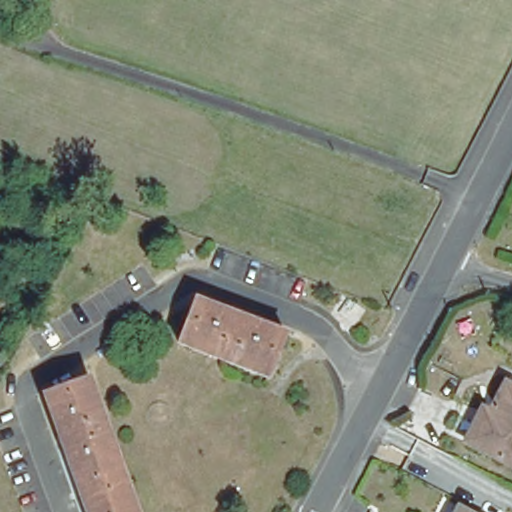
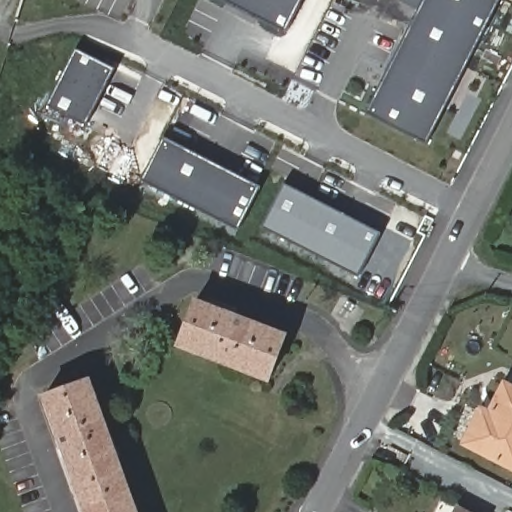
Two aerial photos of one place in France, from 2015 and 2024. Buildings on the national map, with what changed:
new [(288,34),(218,0),(304,0),(288,34)]
new [(421,0),(498,0),(425,143),(365,111),(421,0)]
new [(115,67),(81,131),(41,110),(76,45),(115,67)]
new [(165,135),(262,184),(237,232),(140,184),(165,135)]
new [(282,180),(380,231),(357,275),(260,224),(282,180)]
unchanged [(285,333),(269,377),(181,343),(198,301),(285,333)]
unchanged [(134,512),(85,512),(41,392),(85,376),(134,512)]
unchanged [(482,411),(490,415),(505,386),(512,390),(512,465),(467,442),(482,411)]

